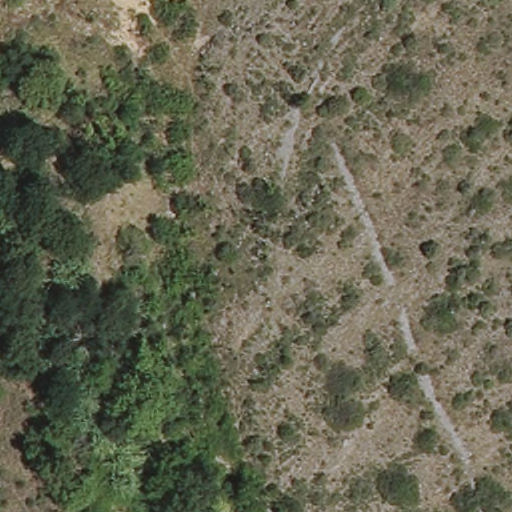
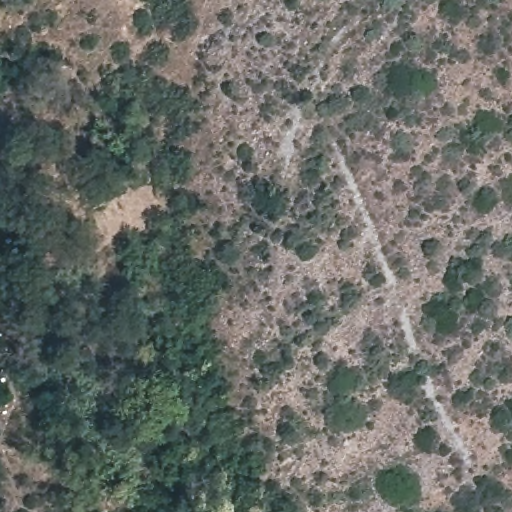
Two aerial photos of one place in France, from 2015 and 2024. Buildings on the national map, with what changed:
[]

